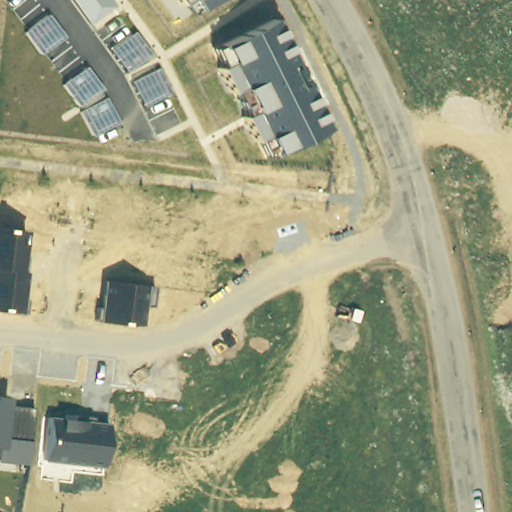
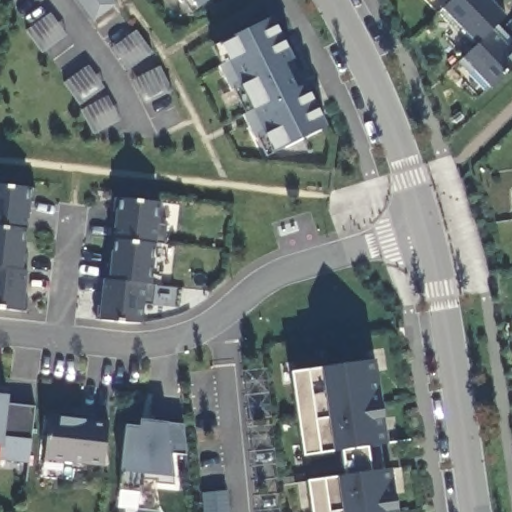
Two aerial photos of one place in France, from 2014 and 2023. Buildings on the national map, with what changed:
unchanged [(75,0),(112,0),(116,5),(92,24),(75,0)]
unchanged [(191,16),(178,0),(212,0),(191,16)]
new [(446,4),(442,0),(450,0),(446,4)]
new [(491,29),(476,44),(442,8),(446,4),(450,0),(489,0),(505,16),(491,29)]
unchanged [(49,13),(66,35),(42,54),(25,30),(49,13)]
unchanged [(325,128),(265,158),(211,45),(270,18),(325,128)]
new [(476,44),(491,29),(512,52),(512,76),(493,92),(463,57),(476,44)]
unchanged [(111,49),(136,31),(152,55),(127,71),(111,49)]
unchanged [(85,66),(103,88),(79,106),(62,82),(85,66)]
unchanged [(159,68),(174,94),(146,107),(132,82),(159,68)]
unchanged [(107,98),(120,123),(94,135),(80,112),(107,98)]
unchanged [(36,189),(34,202),(30,202),(26,232),(0,228),(0,186),(32,189),(36,189)]
unchanged [(117,199),(161,203),(157,224),(167,225),(164,245),(155,245),(151,286),(107,281),(117,199)]
unchanged [(26,272),(21,313),(0,310),(0,228),(26,232),(22,272),(26,272)]
unchanged [(152,287),(151,305),(142,304),(139,325),(97,321),(102,280),(152,287)]
new [(355,364),(375,361),(387,445),(390,470),(396,512),(311,512),(307,482),(335,477),(345,476),(341,452),(333,453),(304,456),(291,373),(319,369),(355,364)]
unchanged [(7,406),(32,408),(26,463),(0,462),(0,454),(2,447),(0,447),(0,397),(9,398),(7,406)]
unchanged [(49,416),(108,422),(104,466),(44,460),(49,416)]
new [(138,428),(138,420),(169,424),(184,425),(187,456),(174,455),(176,477),(176,486),(158,484),(157,480),(145,480),(142,493),(120,490),(121,473),(126,427),(138,428)]
new [(229,512),(203,512),(202,494),(227,491),(229,512)]

